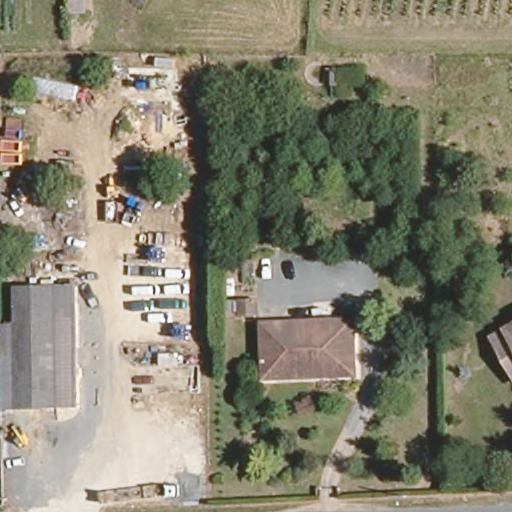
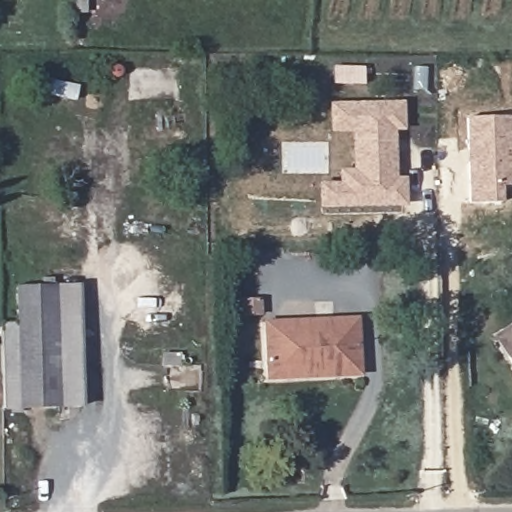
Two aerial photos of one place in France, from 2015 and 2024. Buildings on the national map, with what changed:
new [(318,207),(318,182),(337,184),(338,170),(351,170),(351,132),(331,132),(330,102),(404,102),(406,131),(396,130),(396,176),(406,177),(406,207),(318,207)]
new [(465,116),(510,116),(512,185),(502,185),(502,202),(467,202),(465,116)]
unchanged [(67,282),(67,396),(7,396),(7,283),(67,282)]
unchanged [(308,379),(267,380),(264,323),(355,320),(357,368),(357,376),(308,379)]
unchanged [(512,326),(512,358),(509,353),(497,333),(512,326)]

